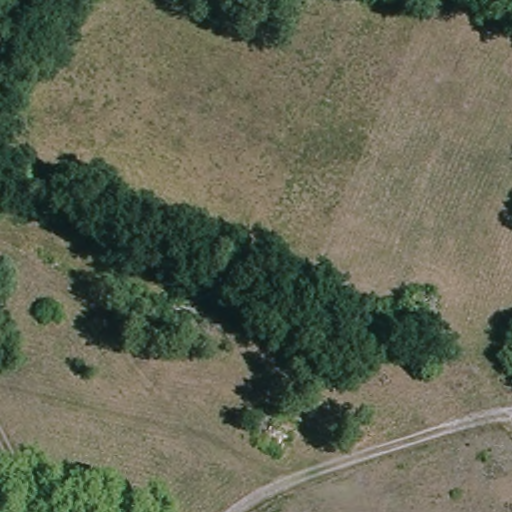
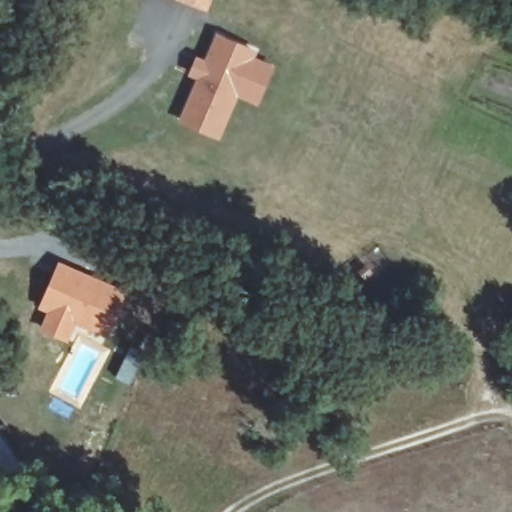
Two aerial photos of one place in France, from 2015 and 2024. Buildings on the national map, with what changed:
new [(207,12),(177,0),(207,0),(211,1),(207,12)]
new [(177,123),(196,79),(187,75),(197,56),(204,59),(216,32),(258,50),(255,58),(275,65),(258,106),(237,97),(220,140),(177,123)]
new [(76,325),(69,343),(40,330),(47,313),(38,309),(58,261),(127,291),(108,340),(76,325)]
unchanged [(251,445),(266,415),(296,435),(281,465),(251,445)]

